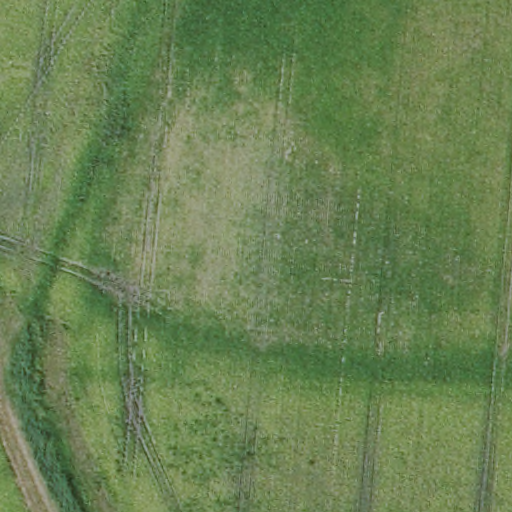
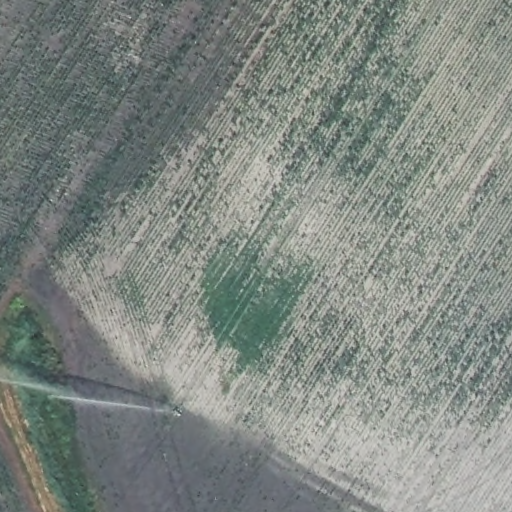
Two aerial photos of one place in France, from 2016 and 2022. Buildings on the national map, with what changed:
[]

